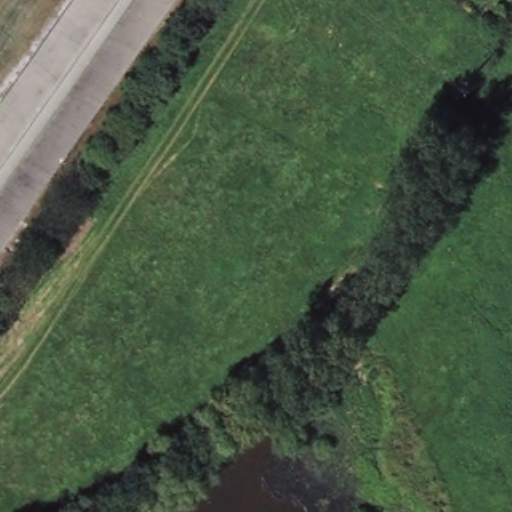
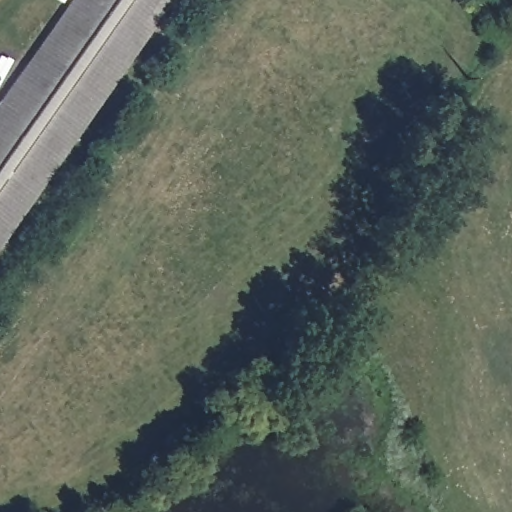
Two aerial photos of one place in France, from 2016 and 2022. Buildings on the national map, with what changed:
unchanged [(71,0),(169,0),(0,239),(0,100),(71,0)]

